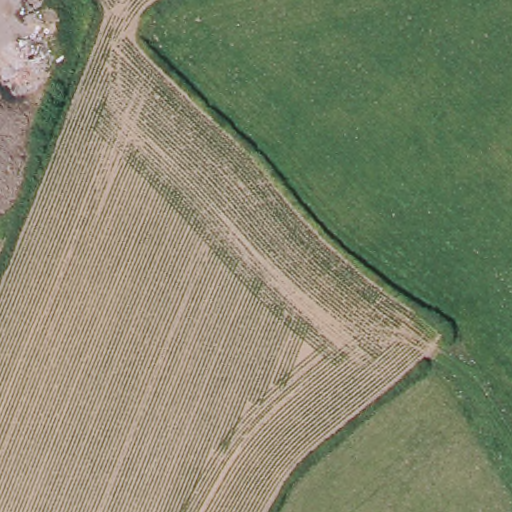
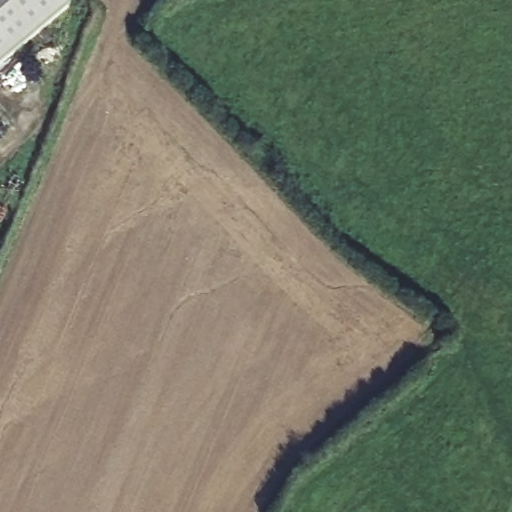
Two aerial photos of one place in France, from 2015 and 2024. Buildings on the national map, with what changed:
new [(68,8),(0,65),(0,0),(62,0),(68,8)]

